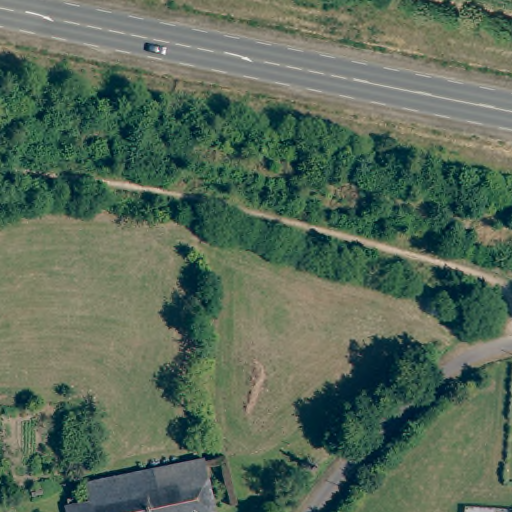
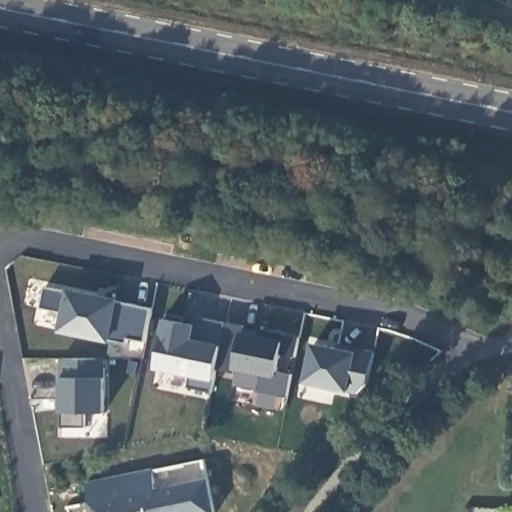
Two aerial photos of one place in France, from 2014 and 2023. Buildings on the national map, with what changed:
new [(41,287),(148,309),(142,340),(124,336),(122,342),(57,332),(61,312),(37,308),(41,287)]
new [(190,375),(156,368),(162,335),(167,314),(226,323),(221,345),(216,368),(214,380),(211,391),(188,386),(190,375)]
new [(258,391),(262,372),(235,368),(234,371),(216,368),(221,345),(226,323),(242,326),(241,333),(258,336),(260,329),(298,337),(295,356),(280,353),(276,372),(291,375),(287,396),(258,391)]
new [(303,383),(312,341),(338,347),(340,343),(376,351),(365,396),(349,392),(303,383)]
new [(62,427),(60,376),(60,357),(104,359),(104,377),(105,412),(86,412),(85,427),(62,427)]
unchanged [(70,512),(68,505),(92,500),(87,485),(206,461),(217,512),(70,512)]

